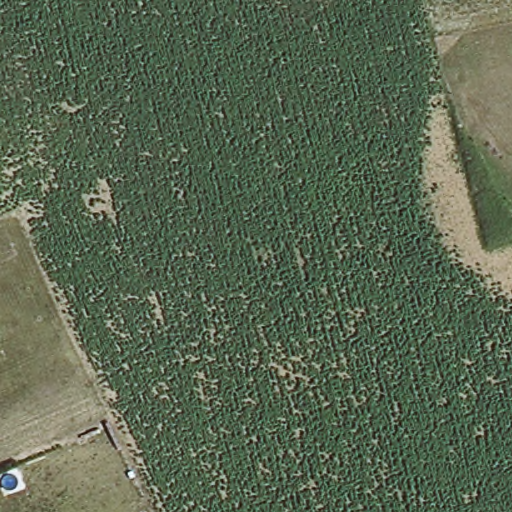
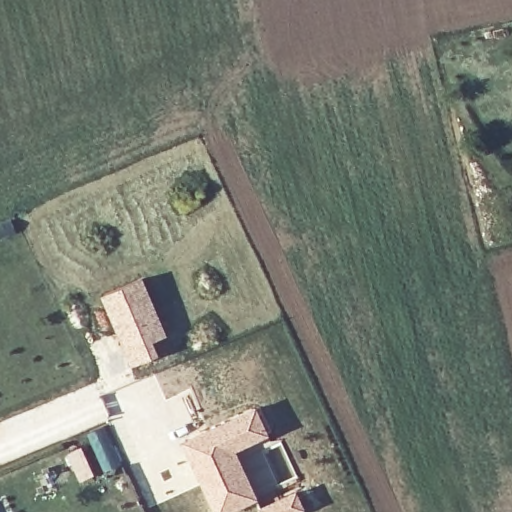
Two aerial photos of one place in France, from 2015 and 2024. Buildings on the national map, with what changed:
new [(143,275),(168,335),(155,340),(160,354),(129,366),(100,295),(143,275)]
new [(256,402),(271,433),(238,450),(259,500),(231,512),(214,512),(178,440),(256,402)]
new [(107,425),(123,461),(103,471),(86,434),(107,425)]
new [(296,486),(307,510),(303,512),(259,512),(257,507),(296,486)]

